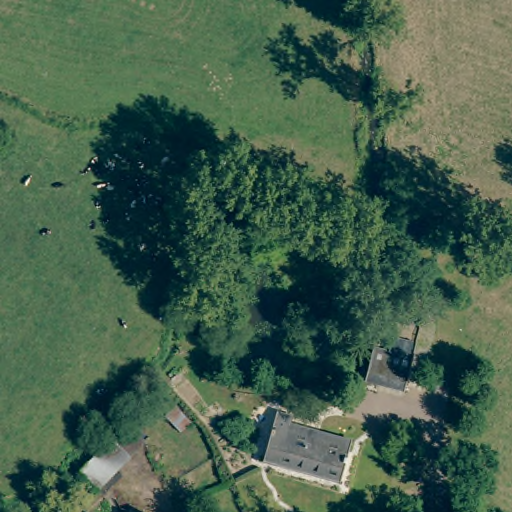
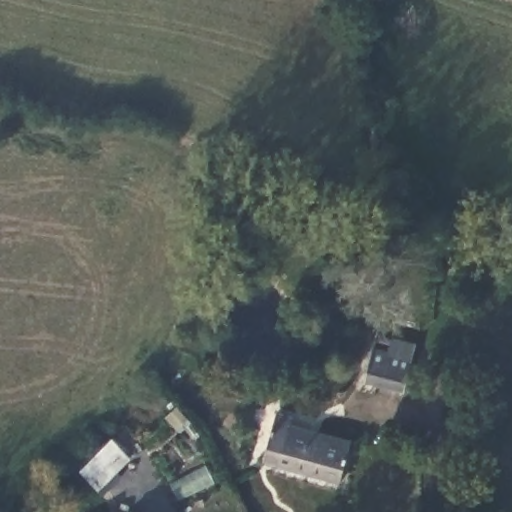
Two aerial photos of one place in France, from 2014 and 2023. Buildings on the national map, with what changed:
unchanged [(421,346),(410,393),(370,382),(376,355),(377,349),(393,353),(396,339),(421,346)]
unchanged [(165,417),(176,407),(190,424),(180,434),(165,417)]
unchanged [(276,414),(291,417),(288,427),(351,444),(340,483),(263,462),(276,414)]
unchanged [(85,471),(117,441),(119,443),(135,427),(149,442),(133,457),(135,459),(103,491),(85,471)]

